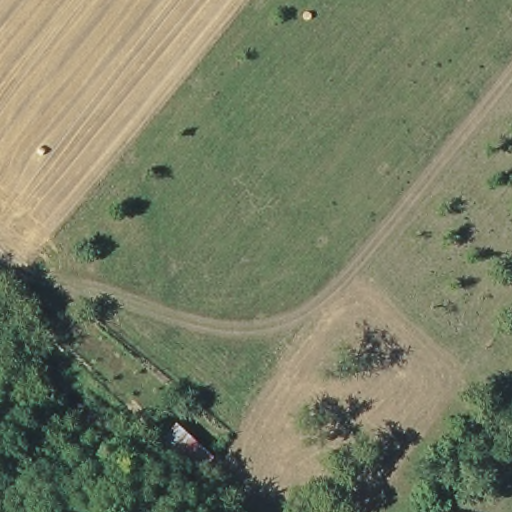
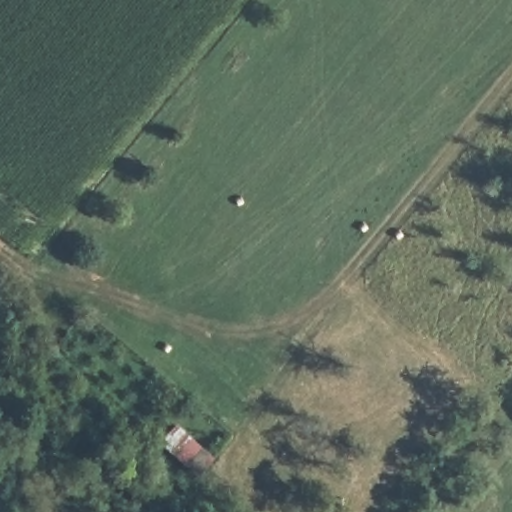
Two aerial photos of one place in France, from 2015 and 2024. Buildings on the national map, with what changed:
unchanged [(177,422),(216,455),(195,480),(157,446),(177,422)]

